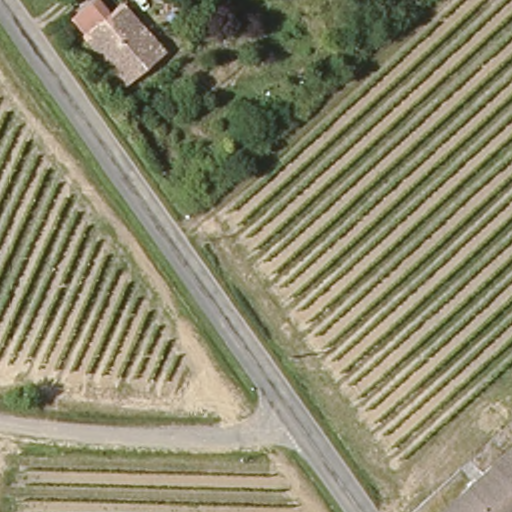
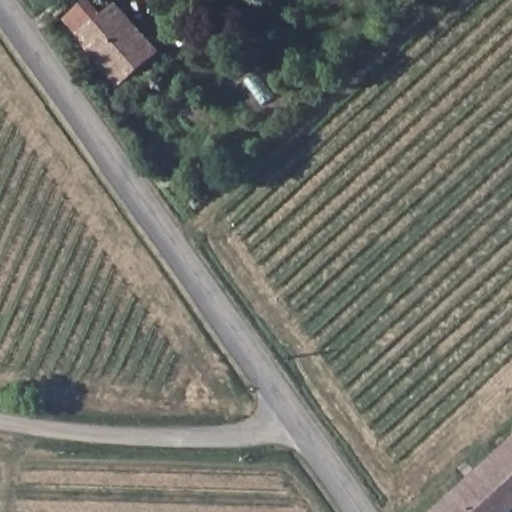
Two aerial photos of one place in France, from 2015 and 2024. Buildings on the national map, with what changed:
unchanged [(154,47),(116,80),(72,30),(108,0),(112,0),(154,47)]
unchanged [(511,512),(437,512),(512,440),(512,511),(511,512)]

